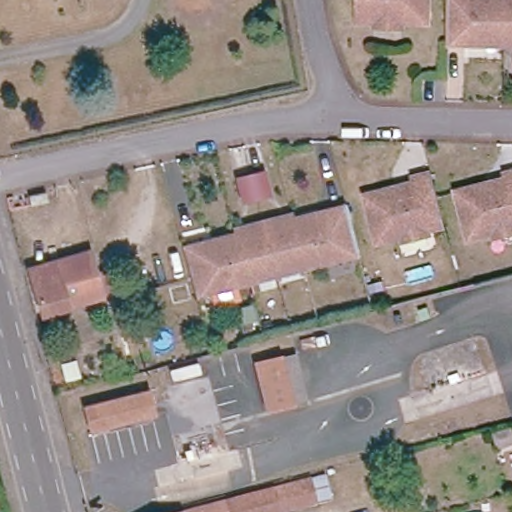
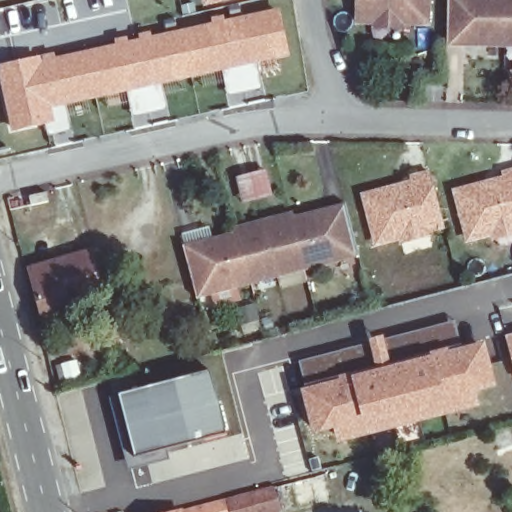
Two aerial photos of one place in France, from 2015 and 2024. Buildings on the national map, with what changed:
unchanged [(427,23),(357,22),(358,0),(427,0),(427,23)]
unchanged [(445,0),(512,0),(512,50),(446,45),(445,0)]
new [(131,119),(125,93),(65,106),(70,132),(49,138),(45,125),(10,133),(0,84),(0,64),(55,52),(55,56),(115,43),(127,39),(211,22),(225,18),(280,8),(290,56),(257,64),(262,91),(226,98),(221,72),(161,85),(167,112),(131,119)]
new [(266,168),(272,192),(243,200),(236,176),(266,168)]
unchanged [(500,174),(512,171),(512,227),(463,239),(451,192),(502,179),(500,174)]
unchanged [(410,188),(409,182),(425,178),(439,230),(372,248),(360,201),(410,188)]
unchanged [(247,294),(245,284),(190,298),(178,251),(232,237),(231,232),(285,218),(286,223),(340,209),(343,217),(353,255),(298,270),(301,280),(247,294)]
unchanged [(98,246),(110,297),(39,314),(26,264),(98,246)]
new [(512,339),(512,364),(505,341),(512,339)]
new [(355,376),(434,356),(485,342),(496,387),(475,394),(478,408),(338,445),(334,427),(312,432),(301,389),(355,376)]
demolished [(296,403),(270,410),(258,364),(285,356),(296,403)]
new [(120,393),(211,370),(227,434),(167,449),(170,460),(129,470),(110,398),(120,393)]
demolished [(153,389),(160,412),(100,428),(93,404),(153,389)]
demolished [(333,497),(269,512),(170,512),(327,474),(333,497)]
new [(173,512),(184,509),(275,485),(282,512),(173,512)]

